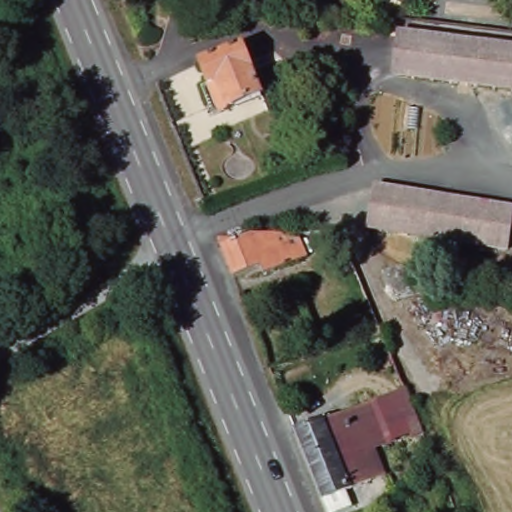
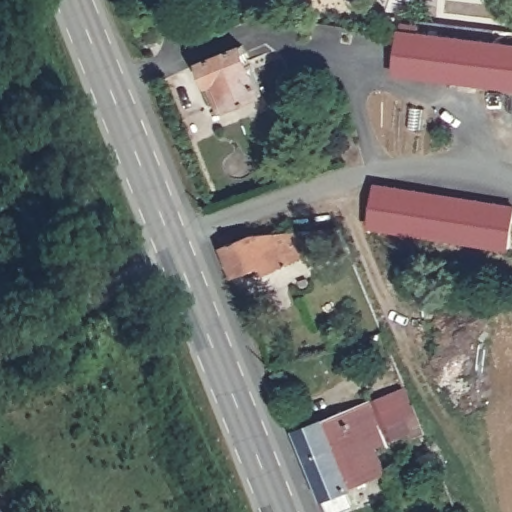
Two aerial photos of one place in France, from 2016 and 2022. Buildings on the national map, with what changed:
unchanged [(512,88),(393,74),(399,33),(512,47),(512,88)]
unchanged [(243,44),(264,94),(222,112),(202,60),(243,44)]
unchanged [(512,237),(510,249),(368,228),(375,185),(512,207),(512,237)]
unchanged [(232,235),(237,244),(255,234),(299,232),(308,256),(266,275),(261,267),(235,278),(218,235),(232,235)]
unchanged [(326,502),(323,494),(296,427),(370,397),(380,423),(383,421),(390,440),(378,444),(388,469),(359,481),(363,489),(326,502)]
unchanged [(414,400),(426,428),(411,434),(400,406),(414,400)]

